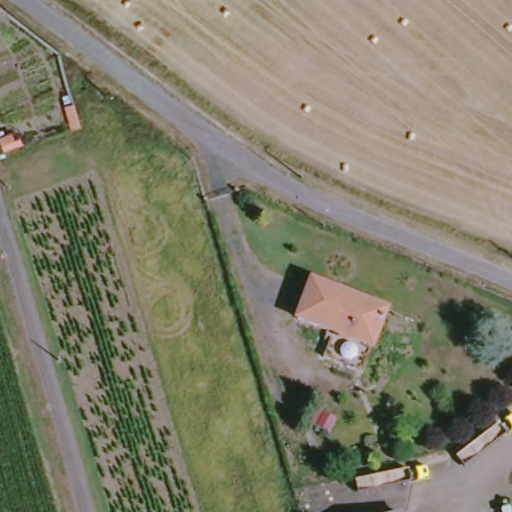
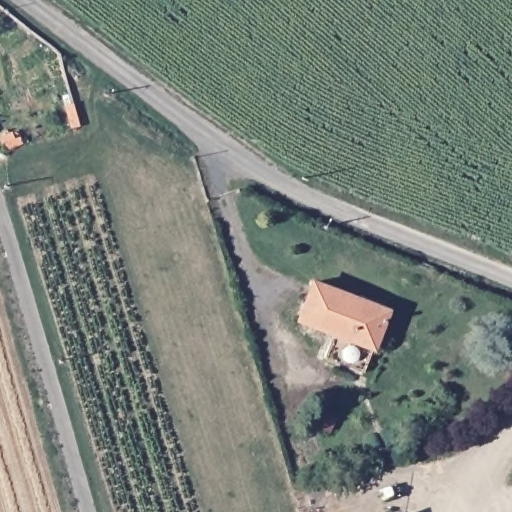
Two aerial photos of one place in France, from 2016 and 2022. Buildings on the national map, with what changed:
unchanged [(303,329),(316,292),(393,318),(376,357),(303,329)]

